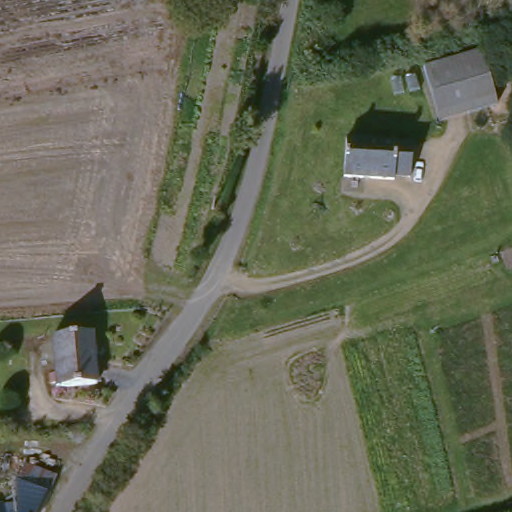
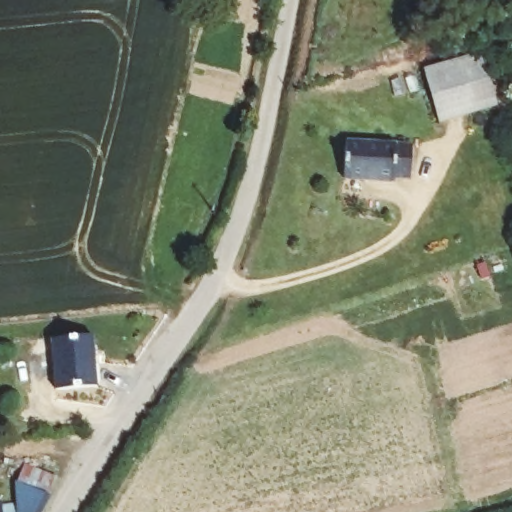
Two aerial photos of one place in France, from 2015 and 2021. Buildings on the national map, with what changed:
unchanged [(426,71),(487,52),(502,102),(443,122),(426,71)]
unchanged [(350,137),(413,139),(410,177),(348,174),(350,137)]
unchanged [(58,335),(99,332),(102,378),(60,382),(58,335)]
unchanged [(30,478),(37,465),(70,478),(57,512),(0,512),(0,506),(25,502),(25,482),(30,478)]

